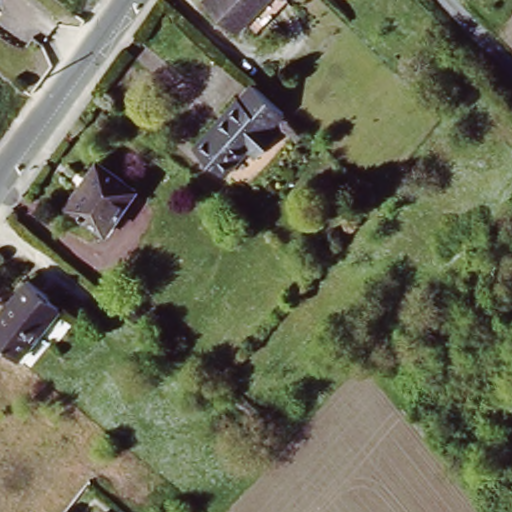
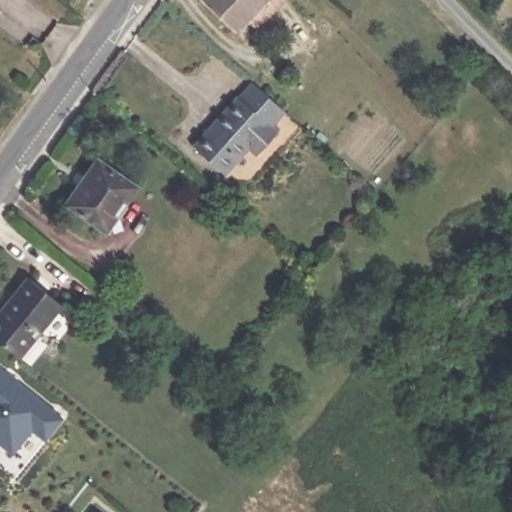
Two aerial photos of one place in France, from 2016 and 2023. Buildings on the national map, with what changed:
unchanged [(206,5),(210,0),(271,0),(245,35),(206,5)]
unchanged [(257,155),(248,148),(228,171),(196,141),(254,79),(285,108),(271,124),(279,132),(257,155)]
unchanged [(108,230),(73,202),(84,187),(77,180),(88,168),(96,174),(107,161),(141,190),(108,230)]
unchanged [(25,359),(0,340),(0,319),(28,278),(62,304),(25,359)]
new [(63,417),(45,440),(32,429),(13,454),(0,443),(0,364),(63,417)]

